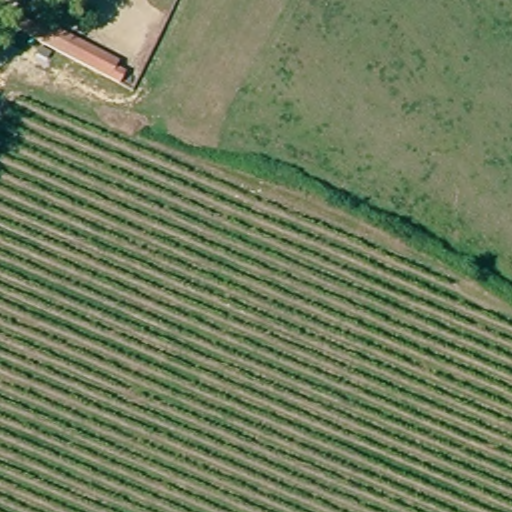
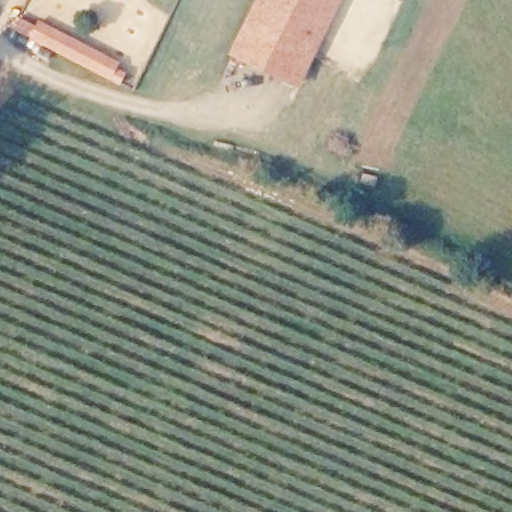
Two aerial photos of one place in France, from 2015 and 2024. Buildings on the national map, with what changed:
new [(254,0),(342,0),(297,89),(226,55),(254,0)]
unchanged [(25,34),(31,23),(46,30),(48,28),(122,62),(120,65),(134,73),(130,83),(25,34)]

